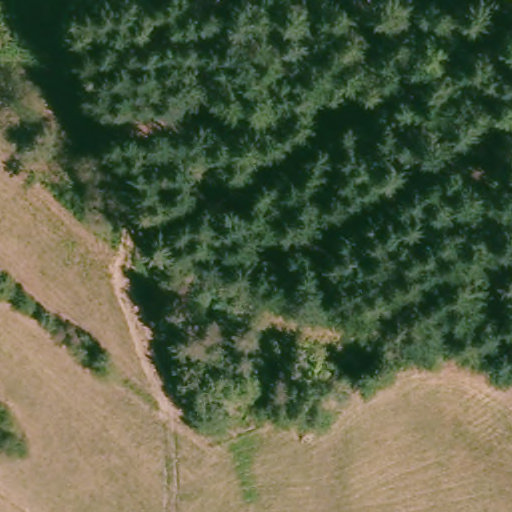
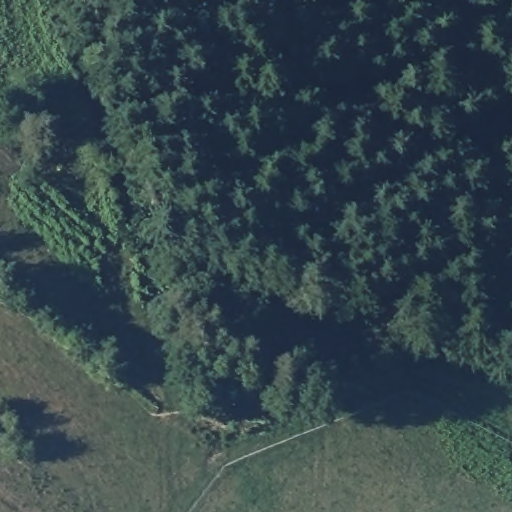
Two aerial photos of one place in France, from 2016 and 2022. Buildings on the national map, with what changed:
[]

